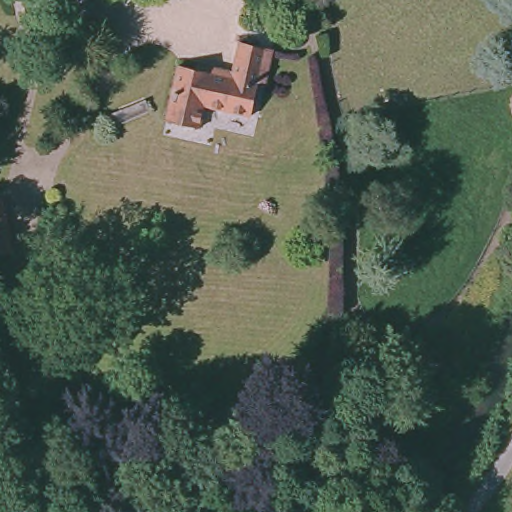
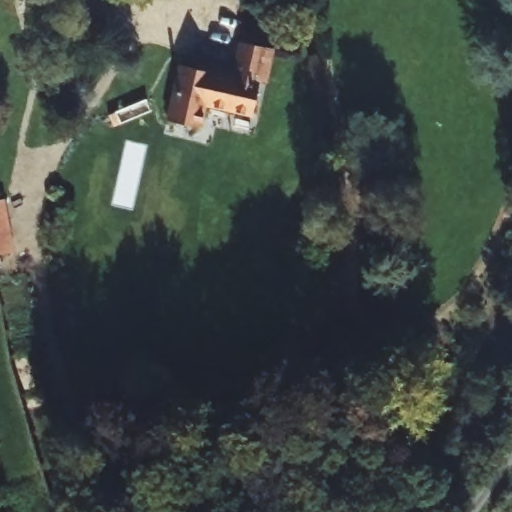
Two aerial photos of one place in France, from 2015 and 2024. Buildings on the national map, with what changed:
unchanged [(228,73),(235,41),(261,47),(252,85),(244,83),(237,118),(190,109),(186,129),(166,125),(180,64),(228,73)]
unchanged [(151,115),(120,128),(119,125),(112,129),(108,117),(145,101),(151,115)]
new [(0,256),(0,199),(4,199),(15,252),(0,256)]

